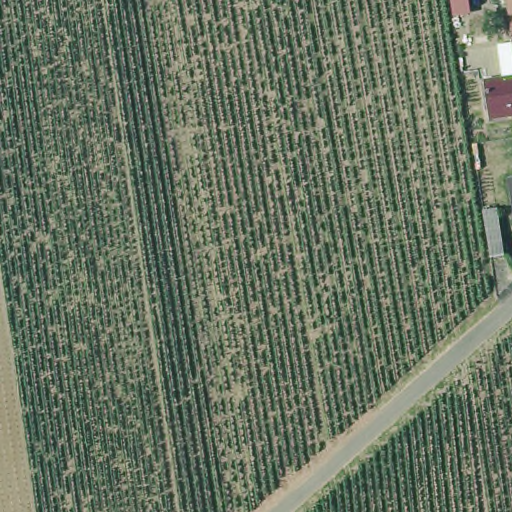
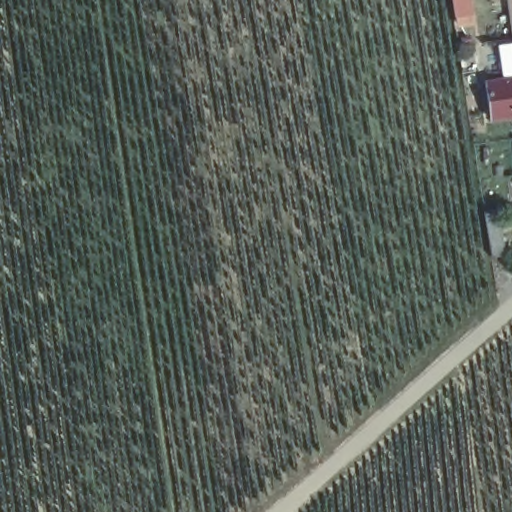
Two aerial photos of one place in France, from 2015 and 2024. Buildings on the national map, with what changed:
unchanged [(510,0),(512,0),(512,13),(510,0)]
unchanged [(495,116),(488,83),(512,79),(512,114),(495,116)]
unchanged [(512,176),(512,208),(506,176),(512,176)]
unchanged [(482,210),(497,208),(498,220),(502,253),(488,254),(483,222),(482,210)]

